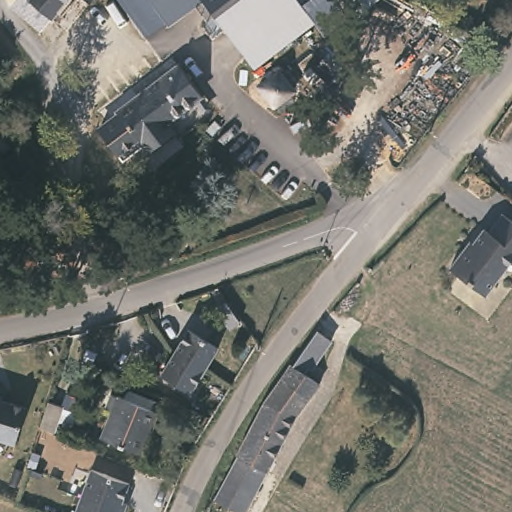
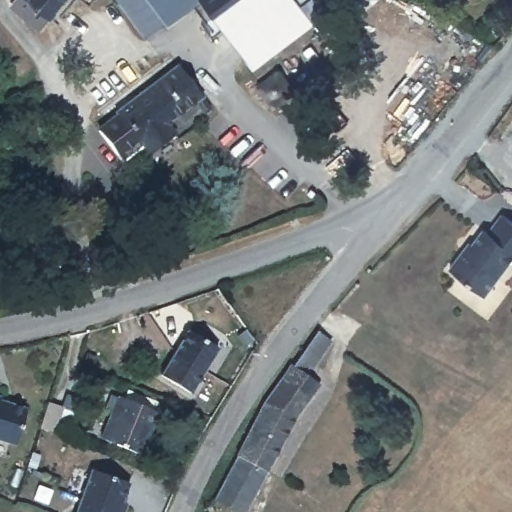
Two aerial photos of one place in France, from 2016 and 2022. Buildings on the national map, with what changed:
unchanged [(52,11),(46,17),(27,0),(71,0),(58,16),(52,11)]
unchanged [(123,0),(197,0),(202,6),(148,39),(123,0)]
unchanged [(203,0),(267,0),(226,31),(203,0)]
unchanged [(242,53),(226,31),(267,0),(298,0),(303,6),(242,53)]
unchanged [(298,0),(311,0),(303,6),(298,0)]
unchanged [(198,96),(162,124),(170,135),(145,154),(137,144),(134,145),(110,114),(174,66),(198,96)]
unchanged [(288,95),(270,109),(255,90),(274,76),(288,95)]
unchanged [(16,146),(6,157),(0,155),(0,131),(11,134),(16,146)]
unchanged [(512,222),(512,263),(486,298),(451,272),(465,253),(468,255),(485,232),(490,235),(503,216),(512,222)]
unchanged [(242,324),(231,331),(215,308),(225,301),(242,324)]
unchanged [(240,493),(236,498),(219,488),(226,475),(254,420),(266,398),(291,362),(293,362),(319,327),(333,339),(314,366),(309,363),(305,370),(320,380),(296,415),(290,426),(256,492),(250,489),(245,497),(240,493)]
unchanged [(187,329),(217,347),(190,393),(160,375),(187,329)]
unchanged [(6,396),(31,403),(23,438),(0,430),(0,389),(7,391),(6,396)]
unchanged [(117,400),(118,398),(157,415),(141,456),(101,440),(112,413),(105,409),(111,397),(117,400)]
unchanged [(69,403),(59,432),(44,425),(52,398),(69,403)]
unchanged [(189,454),(176,486),(168,483),(181,451),(189,454)]
unchanged [(95,467),(135,481),(123,512),(77,512),(95,467)]

